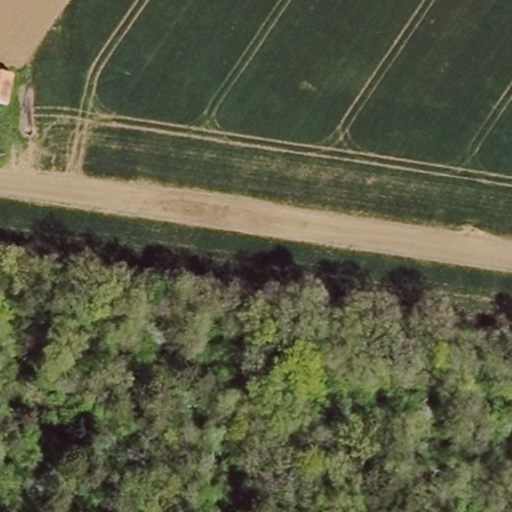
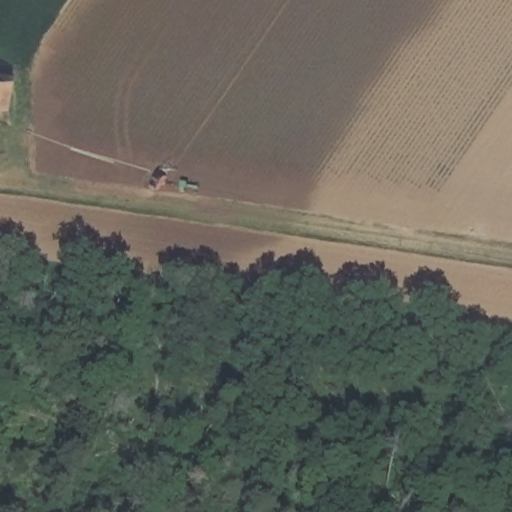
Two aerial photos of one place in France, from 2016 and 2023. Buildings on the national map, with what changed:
unchanged [(14,71),(13,100),(0,99),(0,70),(14,71)]

